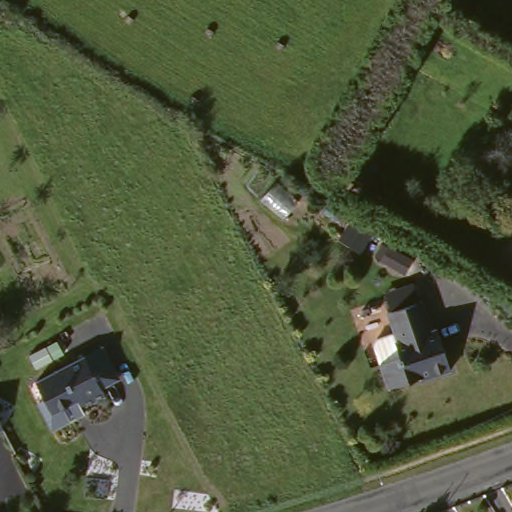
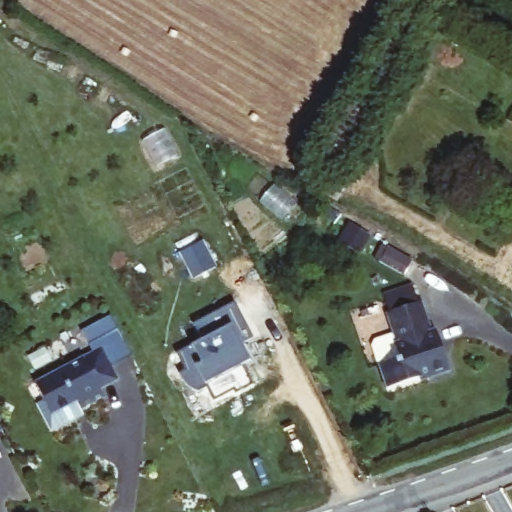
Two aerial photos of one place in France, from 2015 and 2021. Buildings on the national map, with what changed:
new [(202,240),(216,266),(195,278),(180,252),(202,240)]
unchanged [(425,265),(415,278),(393,261),(403,248),(425,265)]
unchanged [(432,375),(431,371),(388,387),(379,364),(401,356),(384,313),(420,299),(431,327),(436,326),(452,367),(432,375)]
new [(204,339),(195,324),(234,301),(255,335),(242,342),(252,358),(246,362),(257,381),(240,392),(239,389),(220,400),(211,387),(203,392),(199,391),(194,388),(188,382),(182,374),(188,370),(179,354),(204,339)]
unchanged [(52,426),(49,412),(38,378),(104,354),(115,386),(96,394),(99,404),(74,413),(75,417),(52,426)]

